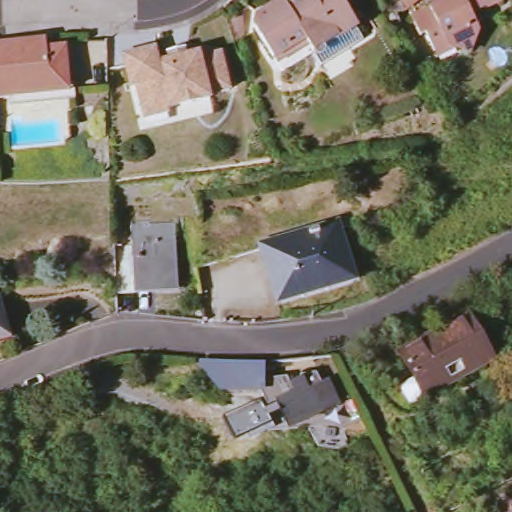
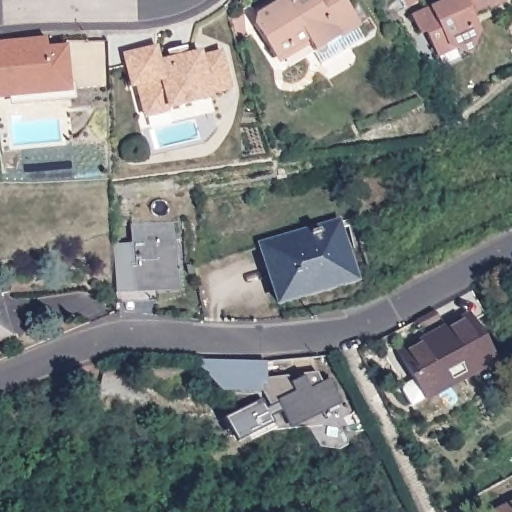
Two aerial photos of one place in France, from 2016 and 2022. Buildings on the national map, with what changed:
unchanged [(356,29),(281,73),(254,27),(259,16),(276,6),(272,0),(273,0),(340,0),(356,29)]
unchanged [(409,9),(400,12),(404,20),(395,26),(385,12),(400,0),(406,0),(409,9)]
unchanged [(437,51),(429,31),(422,34),(415,16),(452,0),(505,0),(505,2),(489,9),(487,6),(472,13),(473,16),(469,26),(480,30),(471,54),(459,49),(440,57),(437,51)]
unchanged [(350,10),(357,6),(367,23),(360,27),(350,10)]
unchanged [(242,10),(245,32),(235,40),(231,25),(230,18),(242,10)]
unchanged [(504,20),(512,16),(512,39),(504,20)]
unchanged [(9,94),(0,95),(0,39),(15,38),(44,36),(45,45),(62,43),(66,80),(74,80),(75,97),(10,103),(9,94)]
unchanged [(142,106),(139,82),(132,83),(128,51),(160,46),(162,61),(174,59),(173,54),(172,51),(189,48),(189,52),(190,57),(204,55),(204,60),(225,57),(230,94),(209,97),(210,102),(167,107),(167,112),(144,115),(142,106)]
unchanged [(132,223),(174,222),(176,281),(133,282),(132,223)]
unchanged [(262,245),(336,223),(350,273),(276,295),(262,245)]
unchanged [(0,335),(0,313),(5,334),(0,335)]
unchanged [(450,332),(448,328),(471,315),(497,361),(413,406),(405,391),(405,386),(418,379),(414,371),(403,352),(430,337),(433,342),(441,337),(450,332)]
unchanged [(232,401),(209,382),(210,375),(222,375),(237,376),(252,376),(267,377),(275,377),(277,393),(265,394),(270,407),(232,401)]
unchanged [(285,416),(277,420),(270,407),(265,394),(277,393),(296,390),(299,396),(310,391),(310,388),(325,387),(330,397),(339,393),(350,416),(315,432),(310,424),(294,433),(285,416)]
unchanged [(512,502),(512,512),(493,512),(492,512),(512,502)]

